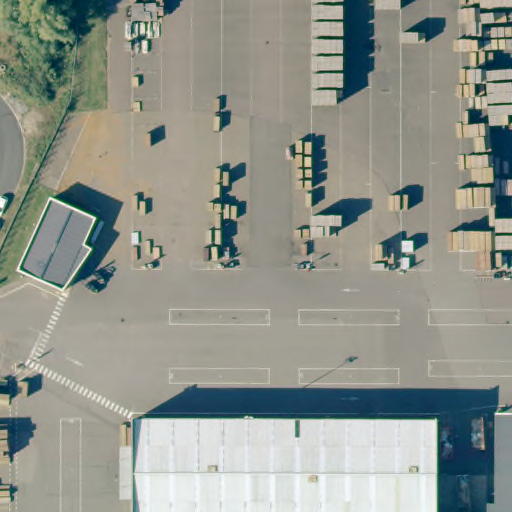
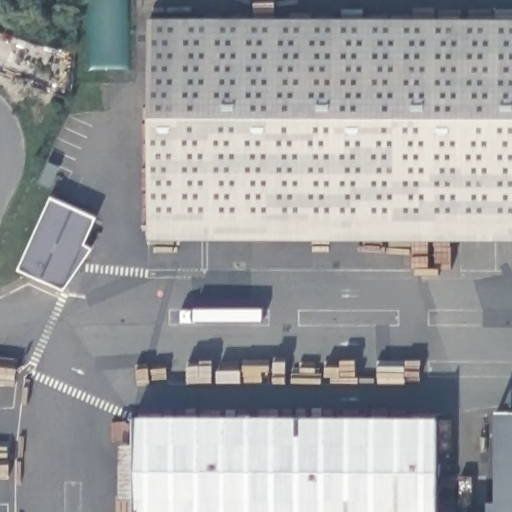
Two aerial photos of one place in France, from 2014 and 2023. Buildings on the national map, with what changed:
new [(512,242),(150,241),(149,21),(512,22),(512,242)]
unchanged [(52,199),(97,219),(85,246),(93,250),(86,261),(80,259),(65,291),(20,271),(52,199)]
unchanged [(481,413),(512,412),(512,512),(481,512),(481,438),(481,413)]
unchanged [(434,425),(437,512),(129,512),(130,426),(434,425)]

